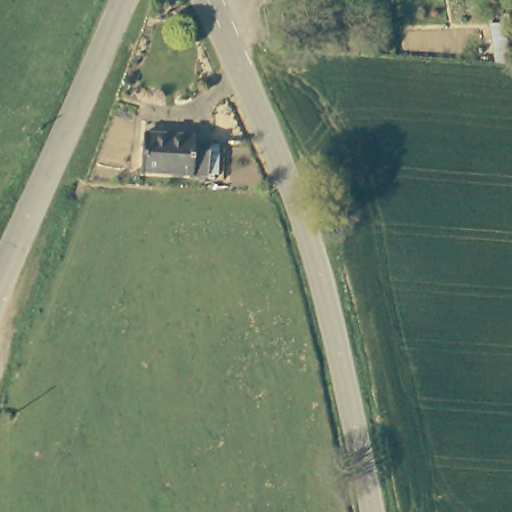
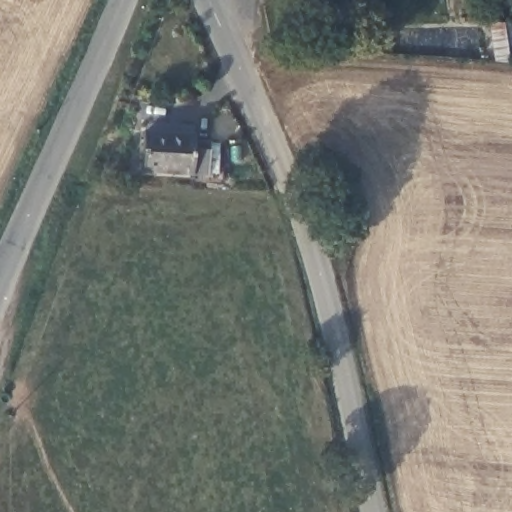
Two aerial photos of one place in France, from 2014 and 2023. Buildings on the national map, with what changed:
unchanged [(196,131),(196,136),(211,138),(210,170),(144,165),(147,126),(196,131)]

